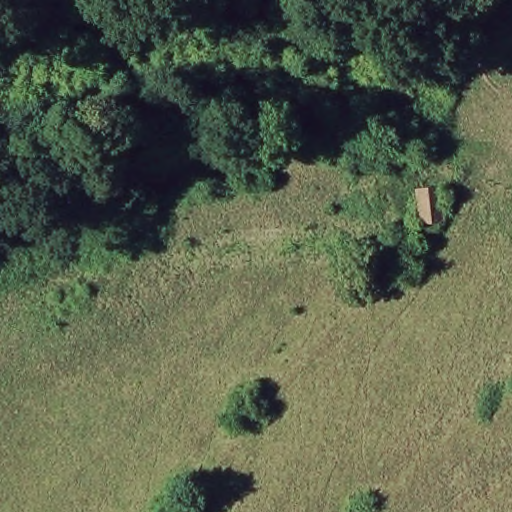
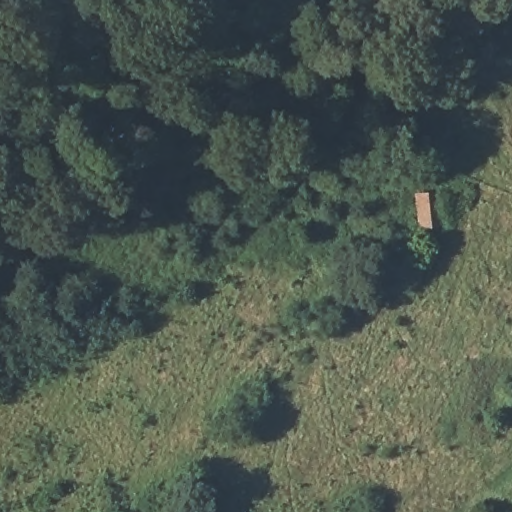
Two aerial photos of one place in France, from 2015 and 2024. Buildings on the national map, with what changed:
unchanged [(432,195),(437,231),(407,234),(406,196),(432,195)]

